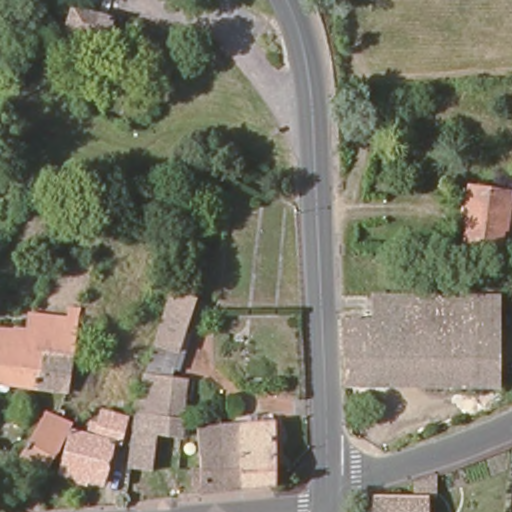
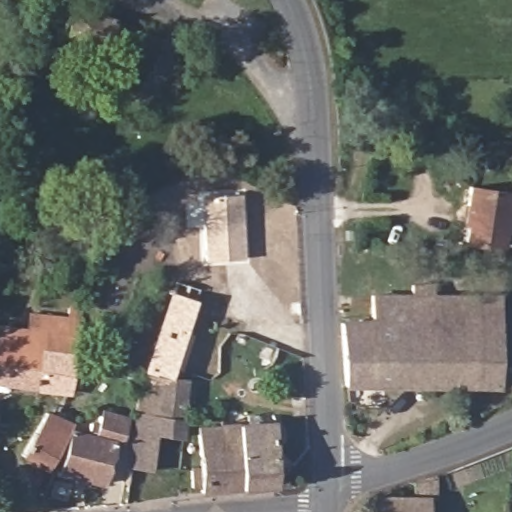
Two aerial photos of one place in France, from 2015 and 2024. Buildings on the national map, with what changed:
unchanged [(93,0),(119,0),(116,9),(93,0)]
unchanged [(115,21),(106,45),(66,32),(74,7),(115,21)]
unchanged [(512,231),(506,231),(505,252),(470,247),(471,226),(466,225),(470,189),(512,194),(512,231)]
new [(240,193),(245,259),(205,262),(200,198),(240,193)]
unchanged [(480,385),(350,389),(347,340),(348,328),(373,327),(373,297),(414,297),(415,286),(437,286),(437,296),(453,296),(453,280),(467,280),(468,296),(476,296),(480,385)]
unchanged [(189,296),(201,300),(176,380),(186,381),(183,417),(170,417),(141,416),(136,416),(135,416),(142,388),(175,281),(180,282),(191,285),(189,296)]
unchanged [(476,296),(501,295),(504,384),(480,385),(476,296)]
unchanged [(46,361),(42,395),(0,391),(0,338),(19,340),(19,336),(26,336),(28,324),(68,328),(70,314),(83,315),(76,364),(46,361)]
unchanged [(71,398),(42,395),(46,361),(76,364),(71,398)]
unchanged [(52,478),(24,464),(51,414),(77,428),(52,478)]
unchanged [(170,417),(183,417),(181,433),(164,431),(159,471),(134,468),(141,416),(170,417)]
unchanged [(130,422),(125,443),(116,441),(105,488),(67,479),(77,438),(100,443),(101,438),(96,436),(98,429),(104,430),(107,417),(130,422)]
unchanged [(273,428),(277,486),(244,490),(241,457),(222,457),(222,456),(220,429),(273,428)]
unchanged [(222,456),(222,457),(241,457),(244,490),(204,493),(204,487),(195,488),(193,467),(202,466),(201,429),(220,429),(222,456)]
unchanged [(456,475),(461,487),(427,498),(422,486),(456,475)]
unchanged [(430,504),(430,512),(377,512),(377,505),(430,504)]

